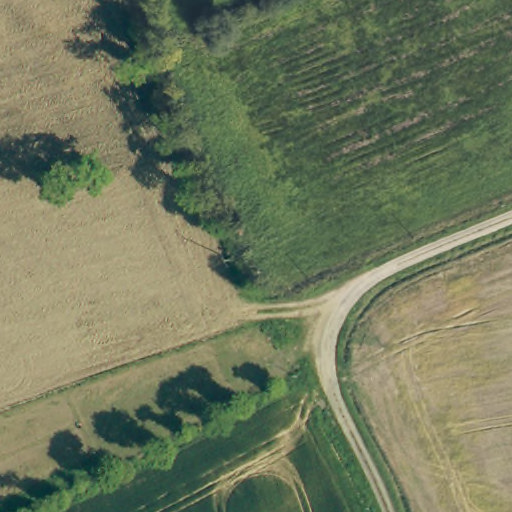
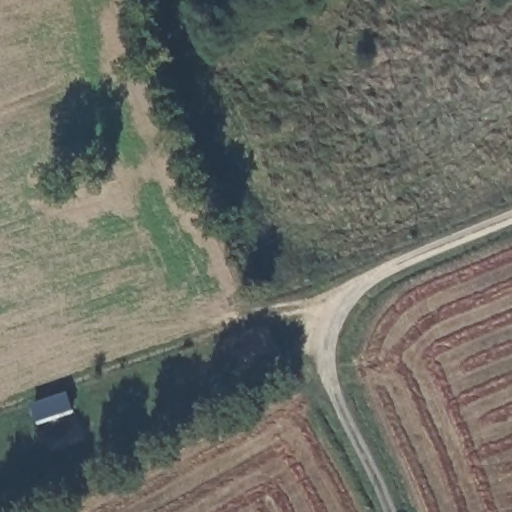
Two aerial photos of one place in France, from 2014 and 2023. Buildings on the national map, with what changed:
new [(39,426),(31,405),(69,392),(76,411),(39,426)]

